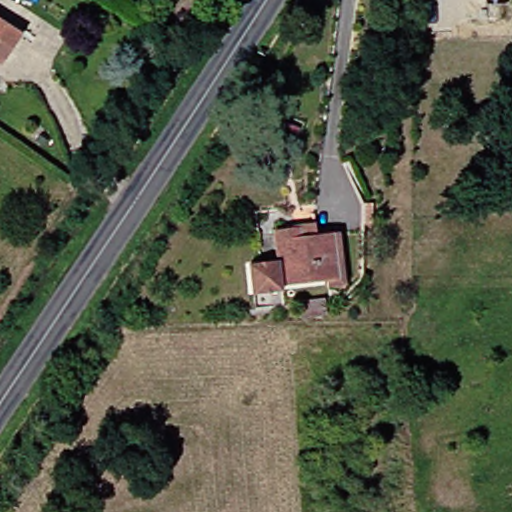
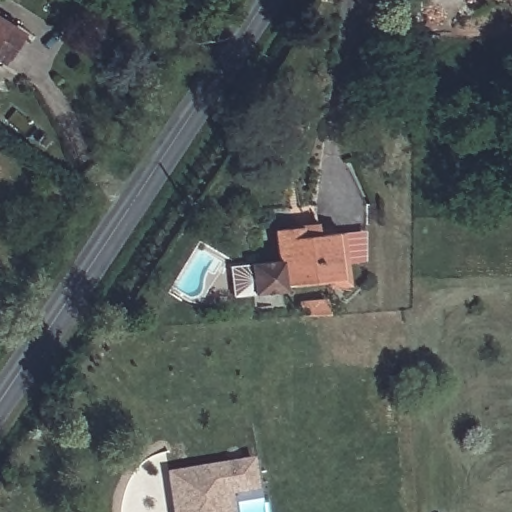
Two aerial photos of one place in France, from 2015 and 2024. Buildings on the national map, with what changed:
unchanged [(0,69),(0,29),(28,47),(9,75),(0,69)]
unchanged [(274,124),(269,138),(252,132),(257,117),(274,124)]
unchanged [(255,262),(267,260),(277,258),(273,230),(298,227),(300,236),(332,231),(338,277),(282,282),(282,286),(272,287),(260,288),(255,262)]
new [(172,470),(257,457),(261,487),(235,491),(238,512),(178,512),(172,470)]

